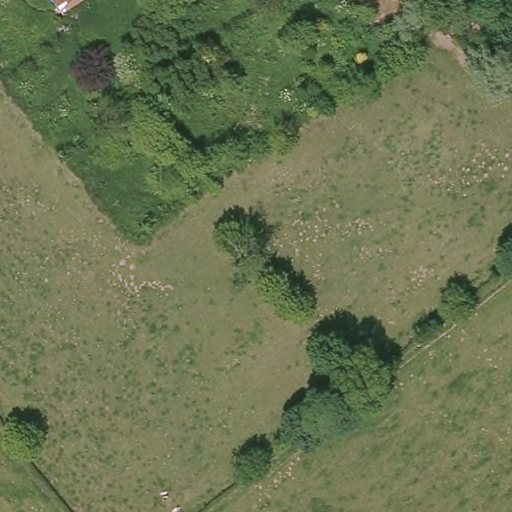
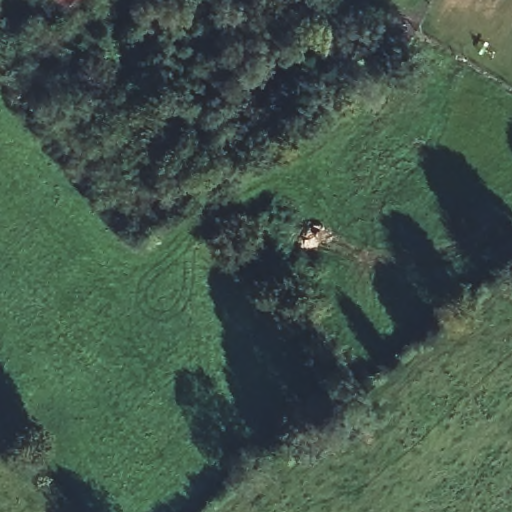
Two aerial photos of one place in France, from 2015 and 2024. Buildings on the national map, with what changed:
unchanged [(64,15),(54,0),(87,0),(64,15)]

